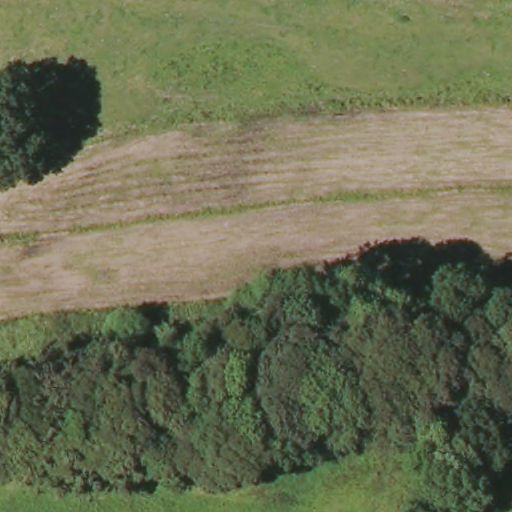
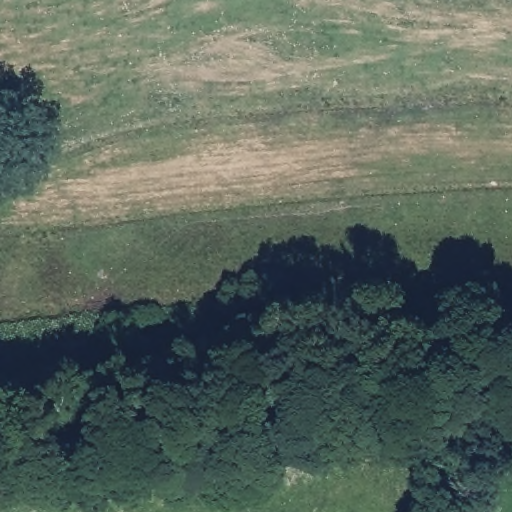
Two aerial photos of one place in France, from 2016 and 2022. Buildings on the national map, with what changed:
[]

